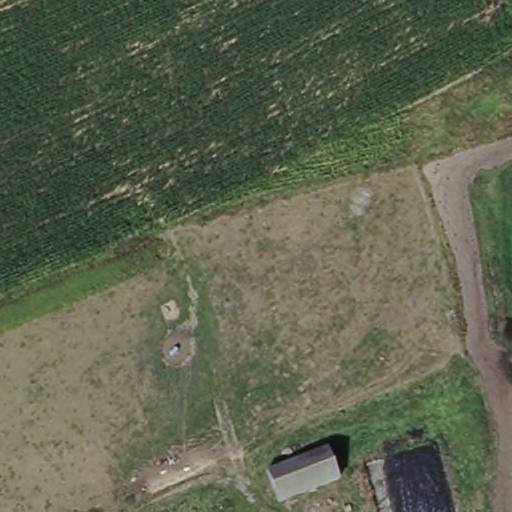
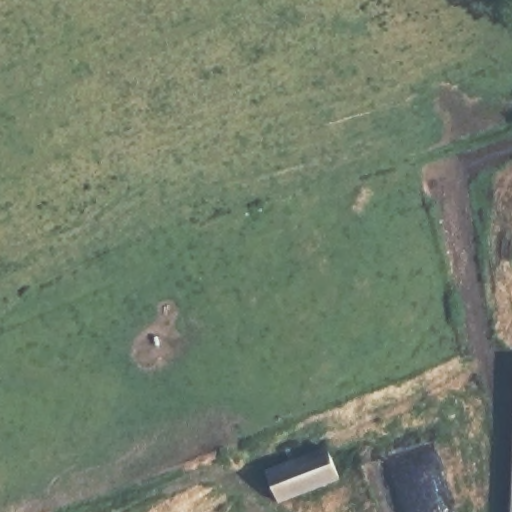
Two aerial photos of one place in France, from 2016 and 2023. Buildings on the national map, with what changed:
unchanged [(327,453),(340,483),(281,505),(268,476),(327,453)]

